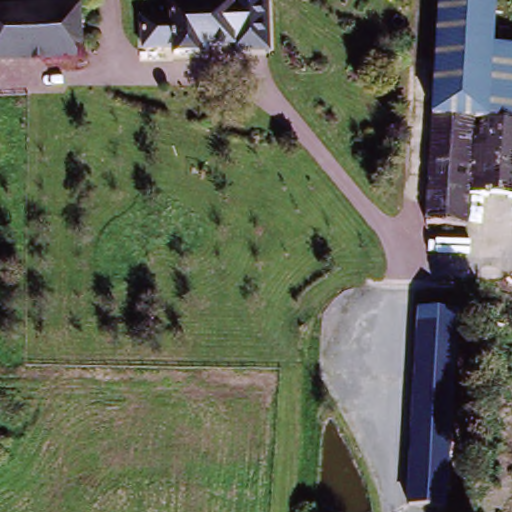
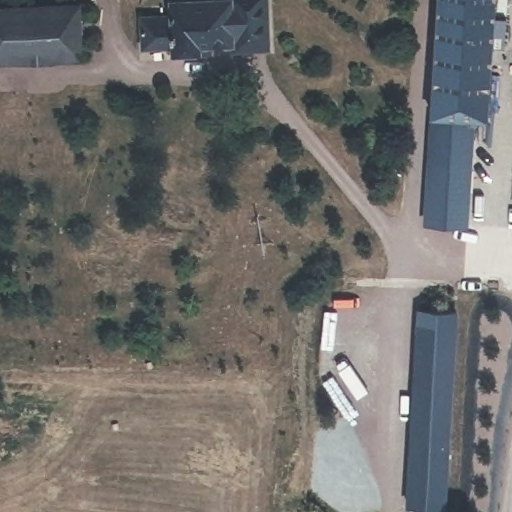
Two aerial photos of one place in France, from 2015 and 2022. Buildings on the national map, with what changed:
unchanged [(161,34),(159,46),(141,45),(143,16),(170,17),(170,0),(252,0),(252,37),(228,36),(227,45),(202,45),(201,52),(184,52),(169,51),(169,34),(161,34)]
unchanged [(151,1),(146,1),(145,0),(153,0),(151,1)]
unchanged [(463,194),(463,227),(424,222),(440,0),(495,0),(493,46),(512,47),(512,197),(463,194)]
unchanged [(0,9),(22,10),(19,63),(0,63),(0,9)]
unchanged [(49,64),(19,63),(22,10),(52,11),(49,64)]
unchanged [(52,11),(81,11),(80,64),(49,64),(52,11)]
unchanged [(412,507),(412,495),(418,315),(451,315),(446,496),(446,510),(412,507)]

